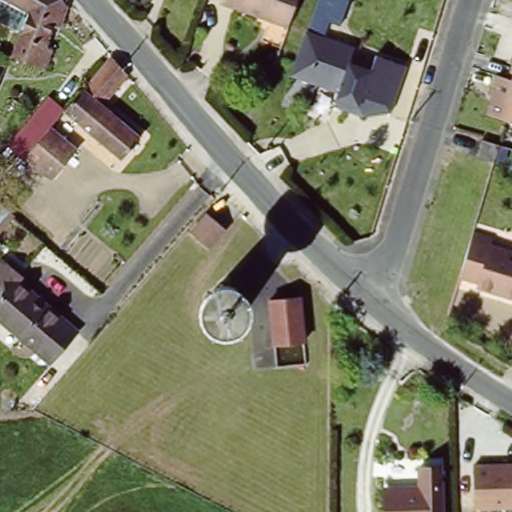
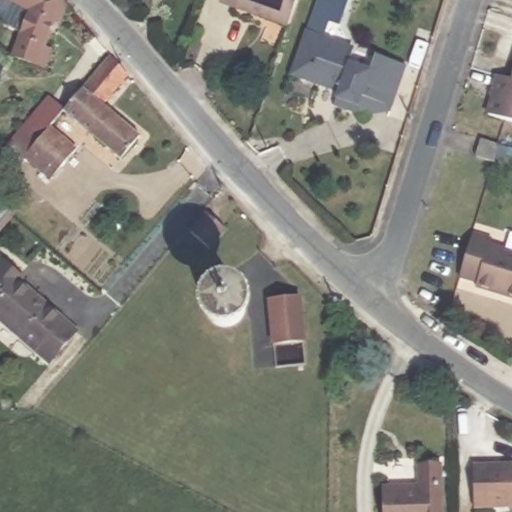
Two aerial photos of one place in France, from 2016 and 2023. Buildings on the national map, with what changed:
unchanged [(48,43),(25,33),(35,7),(17,0),(66,0),(48,43)]
unchanged [(287,24),(223,0),(296,0),(287,24)]
unchanged [(317,0),(349,0),(345,11),(340,27),(311,17),(317,1),(317,0)]
unchanged [(340,88),(292,71),(305,33),(353,49),(340,88)]
unchanged [(364,66),(370,53),(407,66),(392,110),(362,115),(334,105),(340,88),(349,60),(364,66)]
unchanged [(108,56),(110,54),(127,75),(103,102),(142,139),(122,162),(64,109),(108,56)]
unchanged [(507,80),(512,65),(512,81),(507,80)]
unchanged [(490,120),(495,102),(490,100),(497,76),(507,80),(512,81),(512,126),(490,120)]
unchanged [(20,161),(7,150),(44,105),(57,116),(51,124),(25,155),(20,161)]
unchanged [(51,124),(76,145),(50,176),(25,155),(51,124)]
unchanged [(1,234),(0,233),(0,207),(14,219),(1,234)]
unchanged [(228,232),(208,255),(185,233),(204,212),(228,232)]
unchanged [(478,250),(482,236),(498,241),(497,245),(512,251),(512,294),(482,283),(484,280),(470,275),(478,250)]
unchanged [(77,334),(52,363),(0,319),(0,272),(7,263),(27,279),(21,286),(77,334)]
unchanged [(265,295),(302,291),(308,338),(270,342),(265,295)]
unchanged [(387,512),(385,488),(420,486),(418,464),(440,462),(443,512),(387,512)]
unchanged [(512,463),(512,506),(474,507),(472,463),(512,463)]

